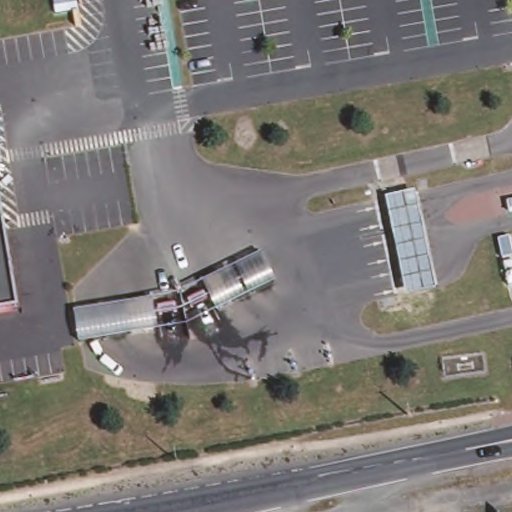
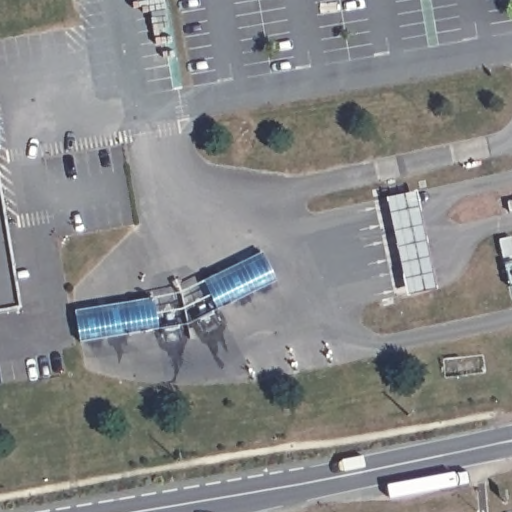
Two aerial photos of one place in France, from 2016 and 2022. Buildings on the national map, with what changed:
unchanged [(0,314),(0,189),(23,310),(0,314)]
unchanged [(419,190),(440,292),(411,298),(387,197),(419,190)]
unchanged [(265,255),(277,279),(217,308),(204,282),(265,255)]
unchanged [(154,299),(158,328),(80,340),(74,311),(154,299)]

